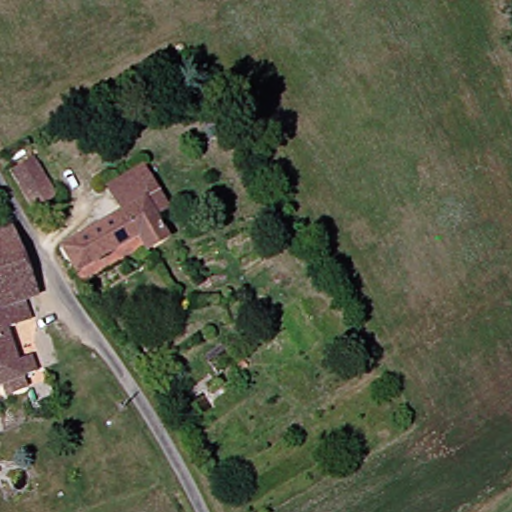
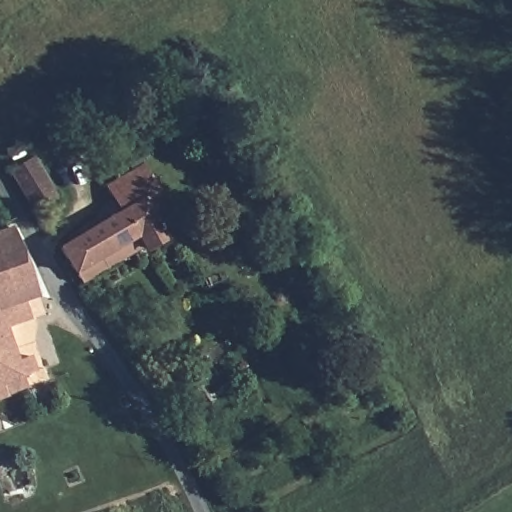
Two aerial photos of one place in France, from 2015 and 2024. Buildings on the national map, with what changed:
unchanged [(133,207),(119,183),(154,162),(168,186),(133,207)]
unchanged [(30,184),(28,185),(22,176),(46,163),(67,200),(46,211),(30,184)]
unchanged [(87,270),(72,244),(133,207),(168,186),(178,203),(165,211),(178,233),(157,245),(155,242),(92,280),(87,270)]
unchanged [(45,298),(33,302),(27,304),(3,234),(20,229),(45,298)]
unchanged [(23,322),(25,326),(15,329),(27,362),(40,358),(45,373),(32,378),(35,389),(13,396),(10,385),(0,388),(0,235),(3,234),(27,304),(33,302),(38,317),(23,322)]

